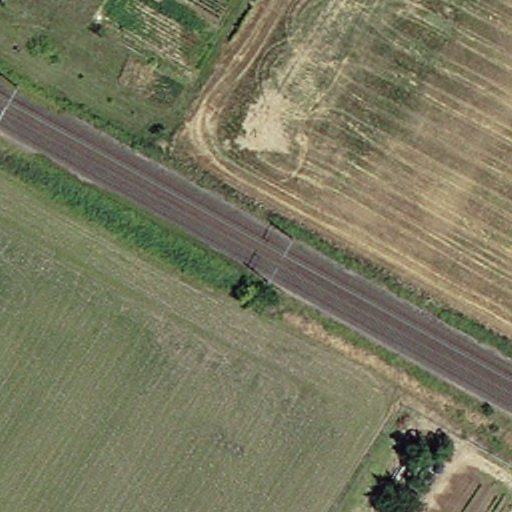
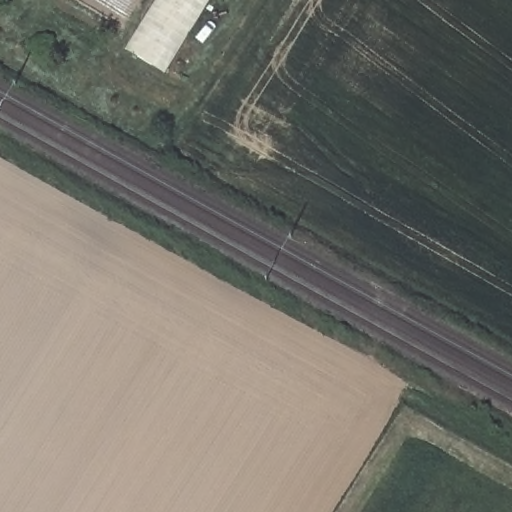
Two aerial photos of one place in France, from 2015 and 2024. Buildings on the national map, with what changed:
new [(161,72),(130,51),(161,0),(205,0),(161,72)]

